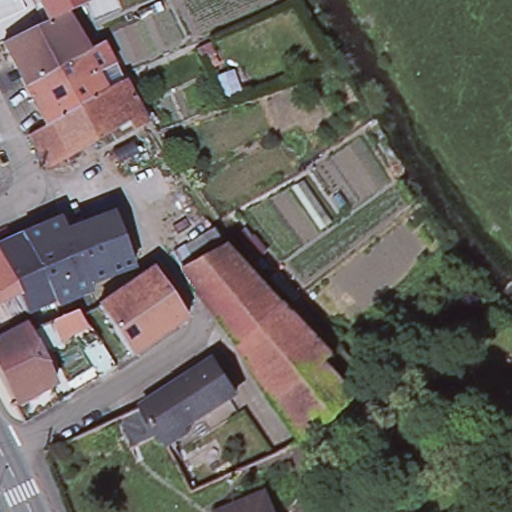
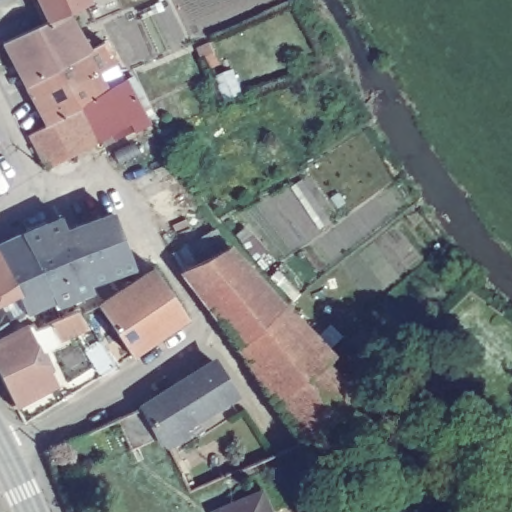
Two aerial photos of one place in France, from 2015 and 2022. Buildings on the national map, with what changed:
unchanged [(86,0),(87,3),(83,5),(64,14),(45,23),(34,0),(86,0)]
unchanged [(64,14),(86,53),(23,87),(0,44),(45,23),(64,14)]
unchanged [(25,136),(44,125),(23,87),(86,53),(101,45),(113,67),(95,77),(103,91),(120,82),(143,123),(145,124),(130,132),(125,124),(63,160),(43,170),(25,136)]
unchanged [(60,212),(65,225),(110,208),(131,264),(86,282),(89,287),(53,303),(48,295),(25,308),(0,326),(0,240),(60,212)]
unchanged [(352,370),(336,384),(349,399),(350,401),(295,442),(295,441),(255,383),(232,347),(220,331),(174,271),(220,247),(278,307),(319,351),(325,356),(333,348),(352,370)]
unchanged [(95,302),(151,264),(185,314),(128,353),(95,302)]
unchanged [(76,305),(86,321),(55,335),(46,318),(76,305)]
unchanged [(22,322),(52,380),(13,400),(0,374),(0,334),(22,322)]
unchanged [(174,423),(177,428),(158,440),(155,433),(137,402),(214,353),(234,386),(174,423)]
unchanged [(172,466),(158,474),(152,462),(166,455),(172,466)]
unchanged [(213,509),(263,490),(272,512),(214,512),(213,509)]

